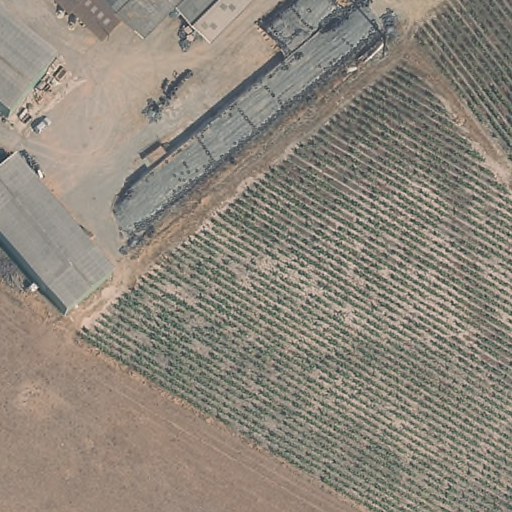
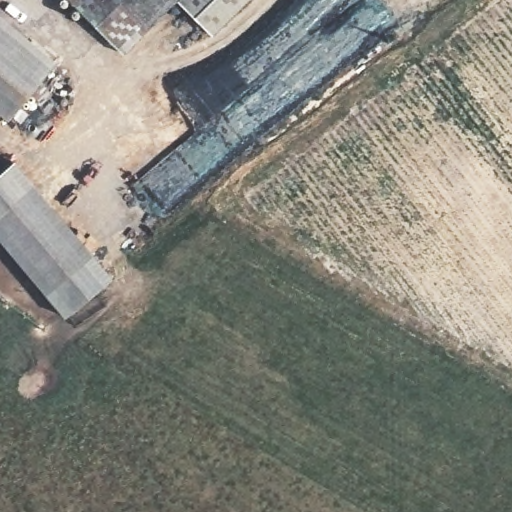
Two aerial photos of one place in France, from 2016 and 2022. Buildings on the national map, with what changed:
unchanged [(67,0),(115,0),(127,12),(102,35),(67,0)]
unchanged [(127,12),(115,0),(174,0),(143,29),(127,12)]
unchanged [(242,0),(210,32),(198,21),(177,0),(242,0)]
unchanged [(53,61),(6,119),(0,115),(0,18),(53,61)]
unchanged [(13,159),(110,276),(64,314),(0,238),(0,171),(13,159)]

